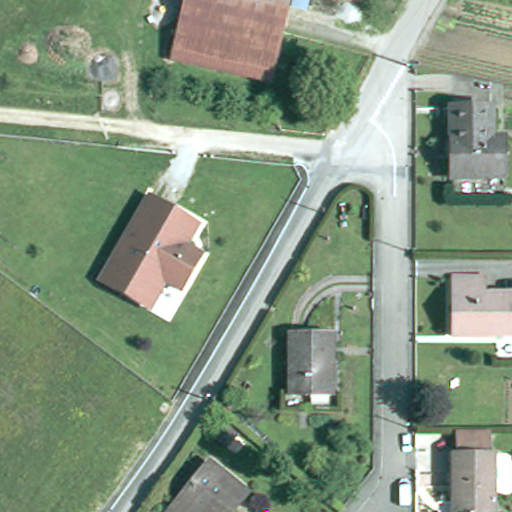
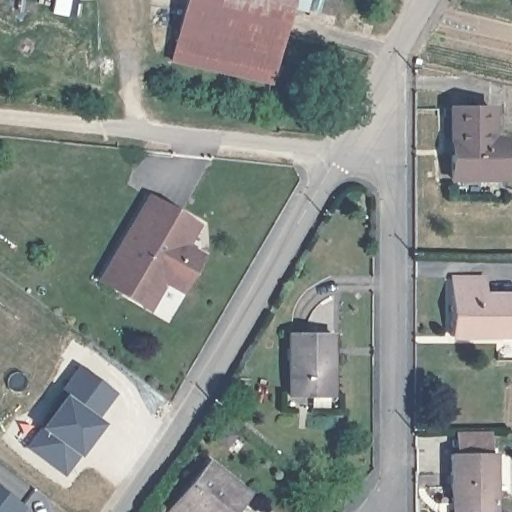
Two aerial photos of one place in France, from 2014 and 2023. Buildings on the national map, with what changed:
unchanged [(177,61),(190,0),(295,0),(278,82),(177,61)]
unchanged [(496,147),(507,147),(508,184),(457,185),(454,112),(495,111),(496,147)]
unchanged [(154,196),(203,224),(198,233),(191,235),(186,243),(207,254),(188,291),(171,282),(165,293),(115,265),(154,196)]
unchanged [(165,293),(155,310),(106,282),(115,265),(165,293)]
unchanged [(512,297),(512,336),(453,336),(453,279),(486,279),(486,297),(512,297)]
unchanged [(334,401),(294,400),(293,337),(334,337),(334,401)]
new [(37,428),(35,426),(58,393),(56,392),(75,367),(111,392),(94,418),(97,420),(84,438),(86,440),(61,475),(24,446),(37,428)]
unchanged [(494,432),(495,458),(453,459),(453,433),(494,432)]
unchanged [(496,512),(454,512),(453,459),(495,458),(496,512)]
unchanged [(179,510),(213,466),(240,484),(241,483),(255,492),(240,512),(178,512),(179,510)]
new [(21,507),(17,512),(0,512),(0,491),(21,507)]

